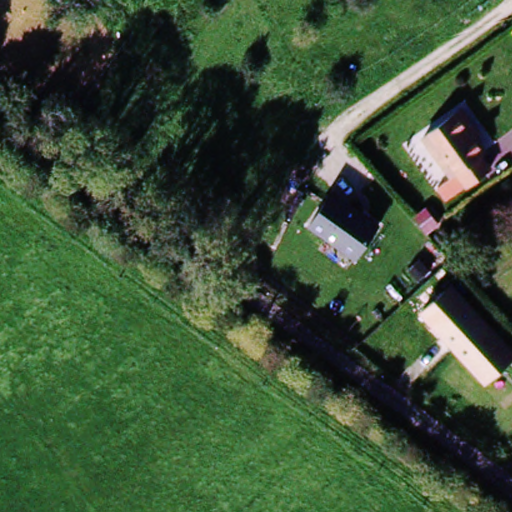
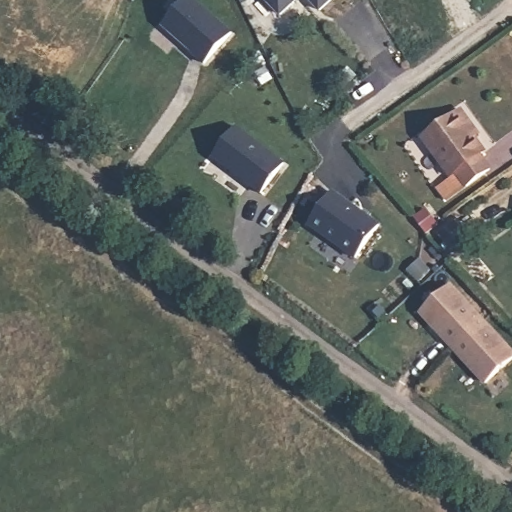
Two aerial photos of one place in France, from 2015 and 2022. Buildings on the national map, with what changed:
new [(186,0),(200,0),(234,32),(202,65),(189,54),(190,51),(162,25),(186,0)]
new [(281,16),(265,0),(297,0),(281,16)]
new [(320,10),(310,0),(331,0),(320,10)]
unchanged [(424,135),(463,110),(490,151),(451,177),(424,135)]
new [(267,195),(218,161),(240,130),(288,164),(267,195)]
unchanged [(379,225),(356,258),(310,227),(333,190),(379,225)]
unchanged [(512,362),(485,387),(420,316),(451,285),(512,350),(512,362)]

